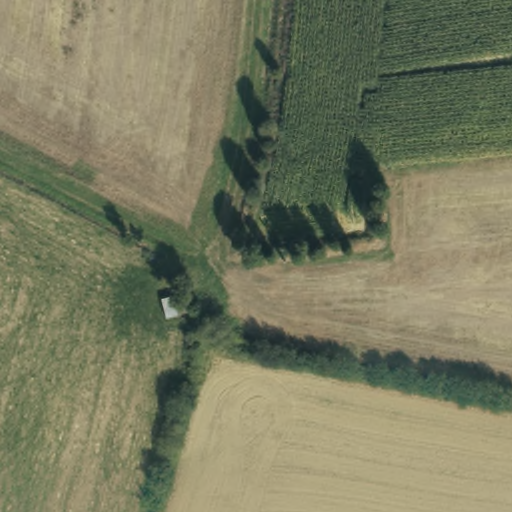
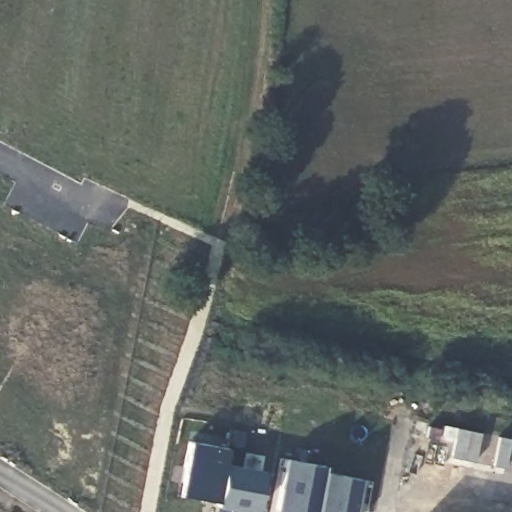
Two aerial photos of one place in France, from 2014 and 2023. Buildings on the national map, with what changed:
new [(226,448),(215,501),(179,494),(189,440),(226,448)]
new [(324,466),(315,512),(279,512),(274,511),(284,458),(324,466)]
new [(222,465),(245,470),(245,467),(262,470),(254,512),(252,512),(230,507),(229,512),(214,512),(222,465)]
new [(354,512),(316,512),(324,471),(361,478),(354,512)]

